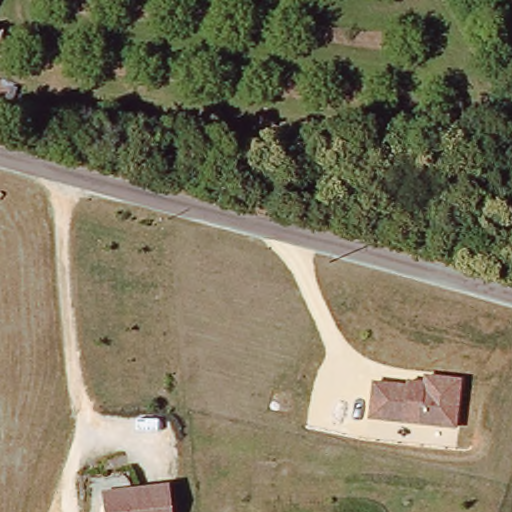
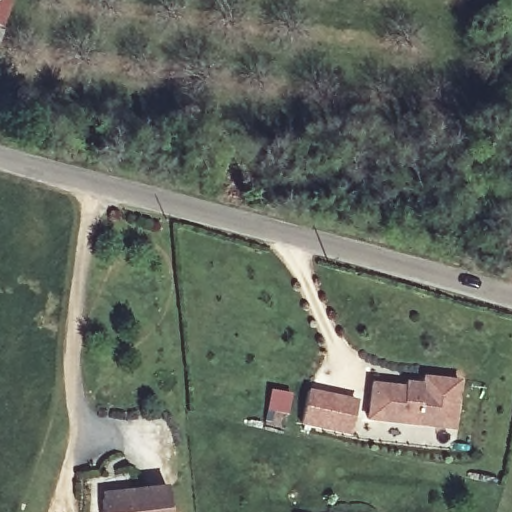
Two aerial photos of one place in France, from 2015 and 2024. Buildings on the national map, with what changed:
unchanged [(4,45),(0,45),(0,24),(9,27),(4,45)]
unchanged [(405,385),(405,381),(423,382),(423,376),(462,380),(457,430),(368,420),(372,383),(405,385)]
new [(308,388),(359,398),(351,433),(301,423),(308,388)]
new [(271,389),(292,392),(287,414),(283,414),(281,425),(265,422),(271,389)]
unchanged [(169,487),(170,512),(102,512),(101,492),(169,487)]

